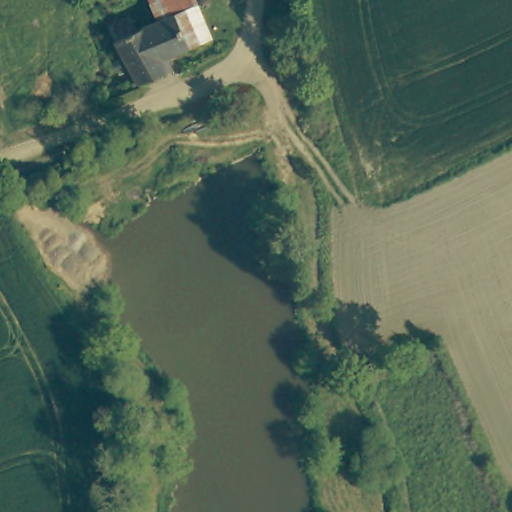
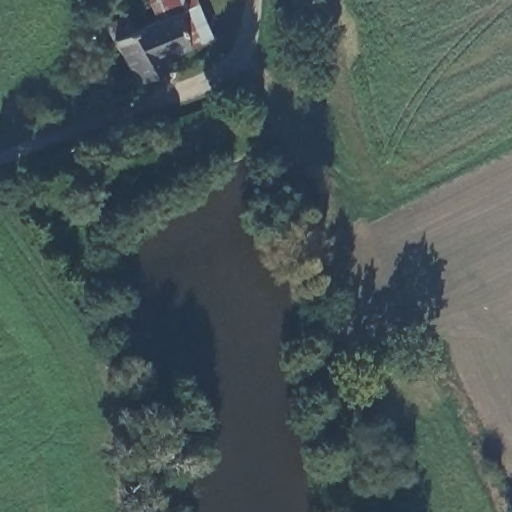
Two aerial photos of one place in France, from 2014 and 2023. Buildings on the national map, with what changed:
unchanged [(149,0),(188,0),(191,7),(158,20),(149,0)]
unchanged [(107,27),(130,18),(135,30),(158,20),(191,7),(206,40),(157,61),(162,74),(134,86),(107,27)]

